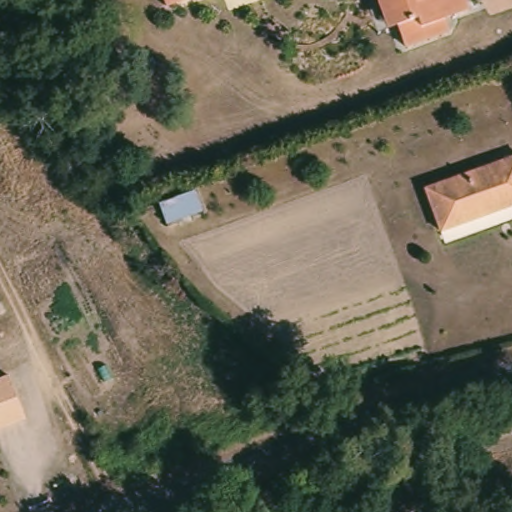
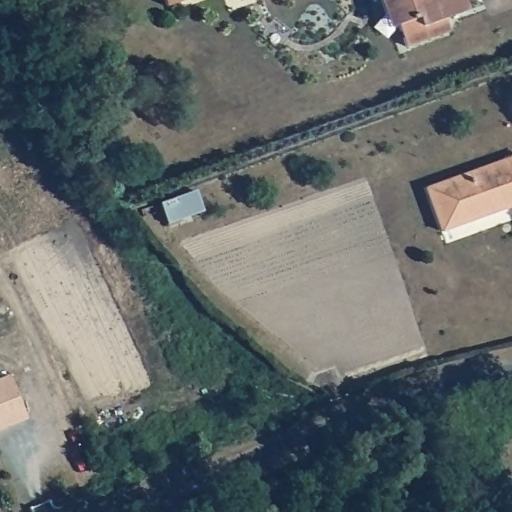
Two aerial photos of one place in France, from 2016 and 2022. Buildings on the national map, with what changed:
unchanged [(165,0),(187,0),(167,6),(165,0)]
unchanged [(442,18),(448,35),(402,50),(395,31),(386,34),(373,0),(464,0),(467,8),(442,18)]
unchanged [(512,161),(512,209),(442,235),(439,228),(425,193),(438,188),(512,161)]
unchanged [(217,197),(159,217),(153,202),(210,179),(217,197)]
unchanged [(26,415),(0,428),(0,377),(7,374),(26,415)]

